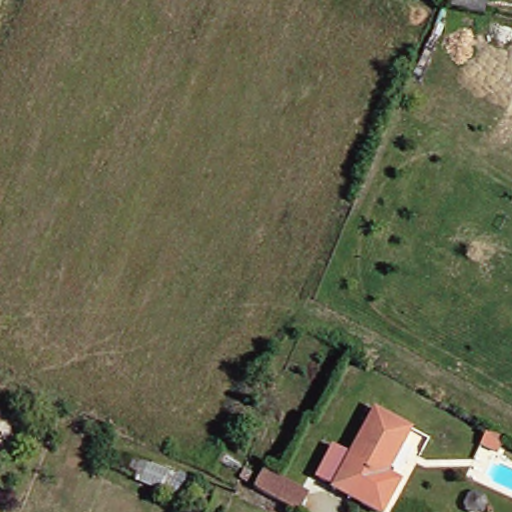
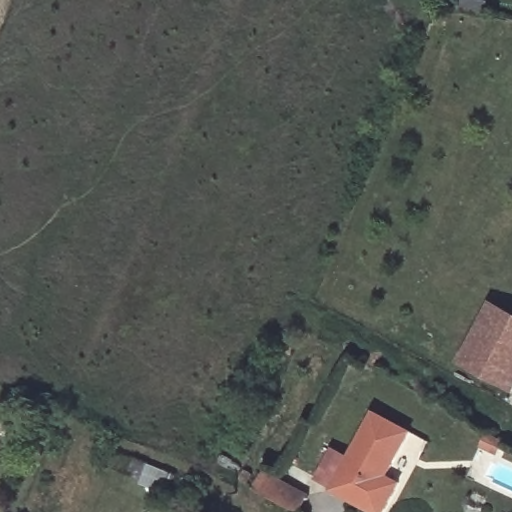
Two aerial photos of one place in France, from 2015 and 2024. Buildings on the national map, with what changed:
new [(512,321),(512,380),(507,388),(457,361),(480,318),(486,307),(512,321)]
unchanged [(405,427),(381,471),(393,478),(377,510),(329,484),(370,408),(405,427)]
unchanged [(506,439),(500,452),(482,443),(488,431),(506,439)]
unchanged [(175,476),(169,493),(135,479),(138,470),(119,462),(121,453),(175,476)]
unchanged [(302,493),(294,508),(248,484),(256,469),(302,493)]

